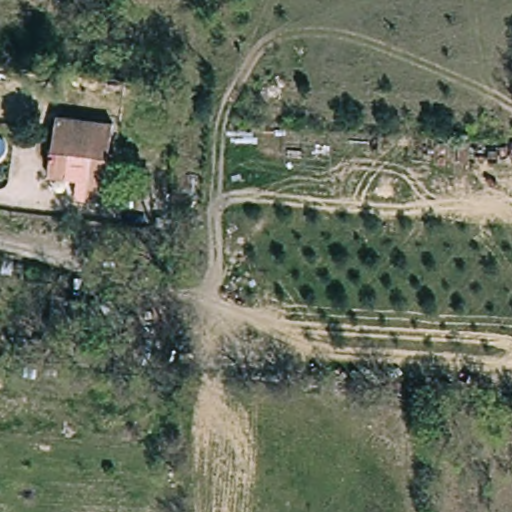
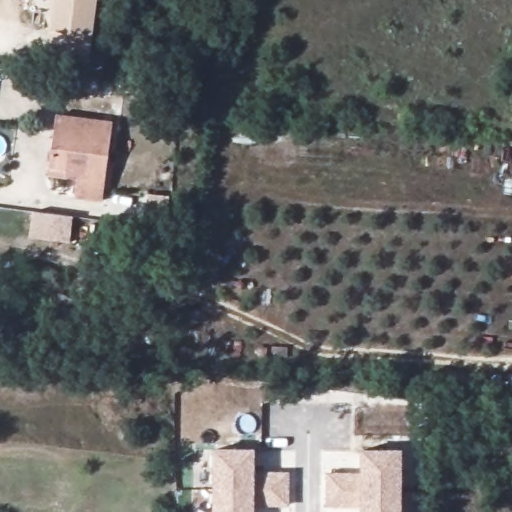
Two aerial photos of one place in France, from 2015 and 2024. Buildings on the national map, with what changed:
new [(90,57),(47,52),(54,0),(97,0),(90,57)]
unchanged [(50,178),(51,168),(58,118),(117,126),(108,201),(79,197),(82,177),(90,177),(92,160),(72,156),(70,170),(68,180),(50,178)]
new [(255,474),(290,471),(290,506),(255,507),(255,512),(213,512),(213,449),(255,448),(255,474)]
new [(402,512),(360,512),(360,508),(327,506),(327,472),(360,475),(362,450),(402,450),(402,512)]

